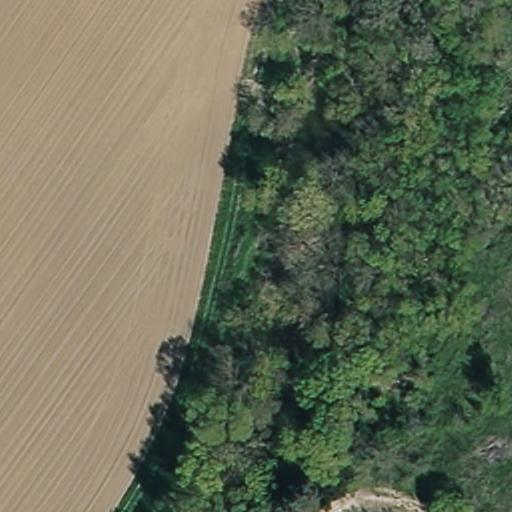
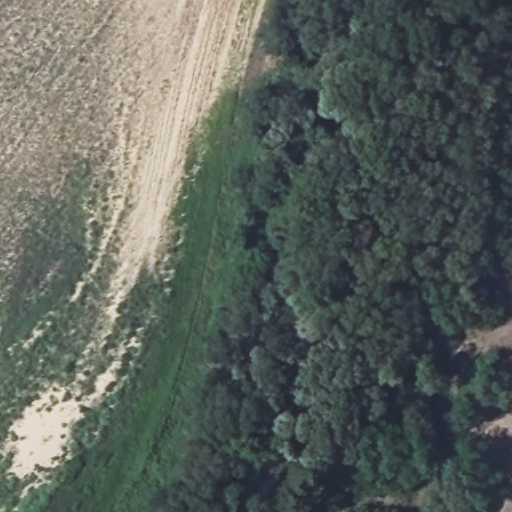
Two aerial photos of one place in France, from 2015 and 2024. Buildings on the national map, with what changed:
[]

